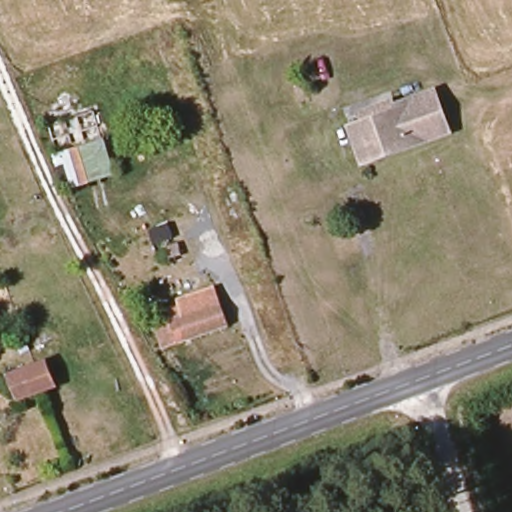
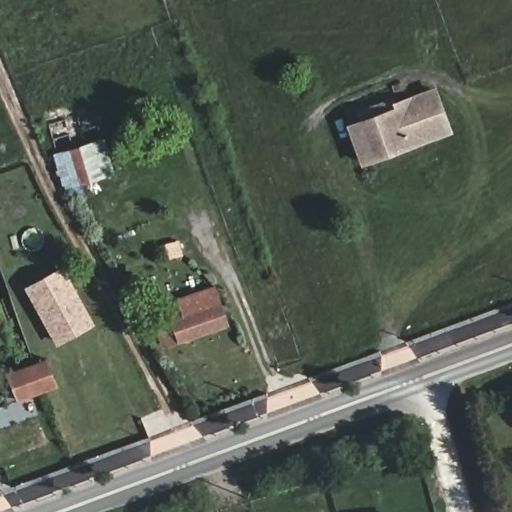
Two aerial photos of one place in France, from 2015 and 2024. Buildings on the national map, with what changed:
unchanged [(397,111),(394,105),(436,88),(453,135),(361,168),(345,127),(397,111)]
unchanged [(103,139),(115,174),(65,191),(53,154),(103,139)]
new [(65,270),(94,324),(61,342),(32,288),(65,270)]
unchanged [(229,324),(153,352),(147,330),(168,321),(164,308),(220,288),(229,324)]
unchanged [(47,358),(59,387),(18,403),(5,375),(47,358)]

